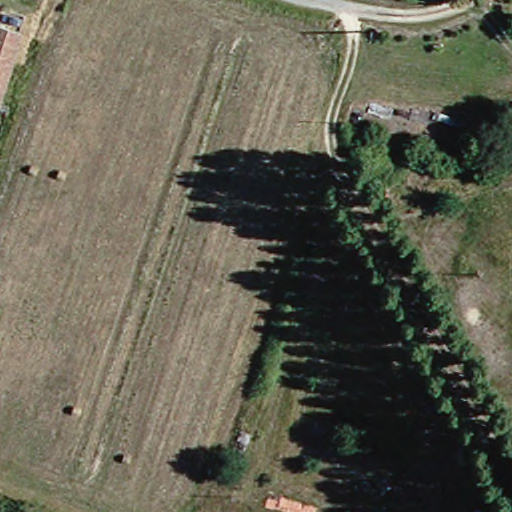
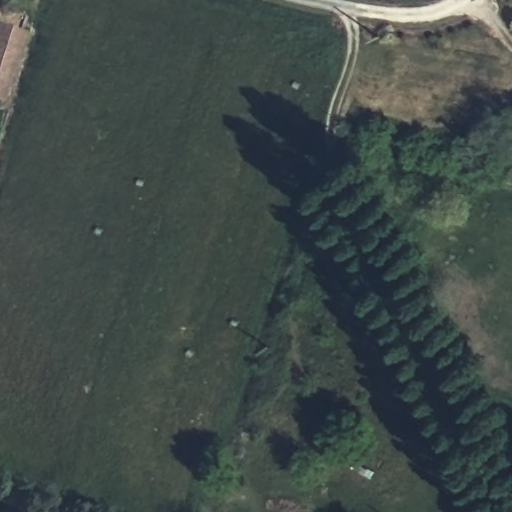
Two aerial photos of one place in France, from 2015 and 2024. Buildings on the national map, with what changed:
unchanged [(3,91),(0,100),(0,35),(20,41),(3,91)]

